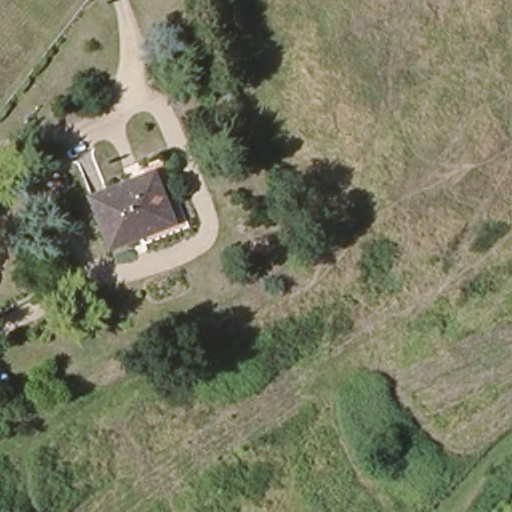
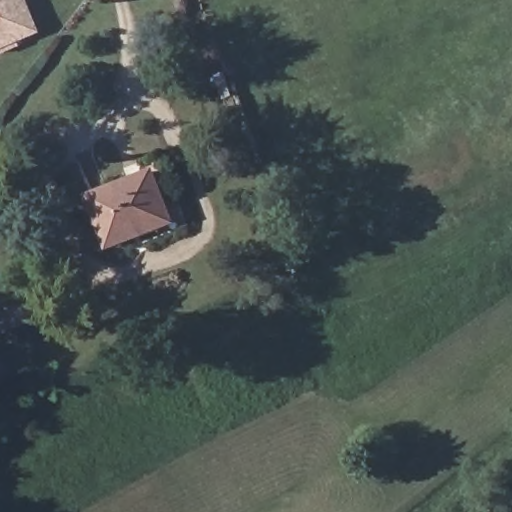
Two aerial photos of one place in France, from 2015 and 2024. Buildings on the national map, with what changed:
new [(0,51),(0,0),(29,0),(43,34),(0,51)]
unchanged [(133,235),(112,245),(91,194),(148,169),(166,207),(171,217),(133,235)]

